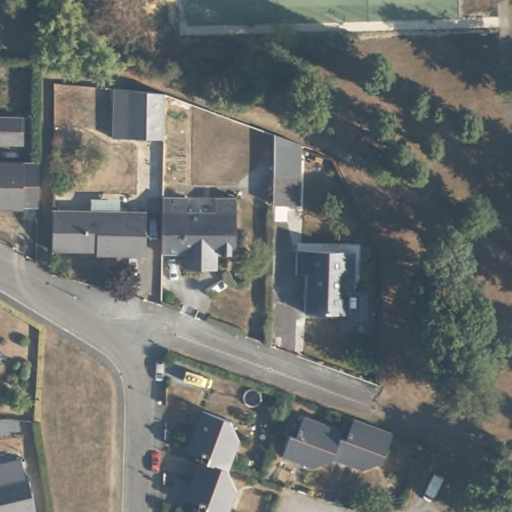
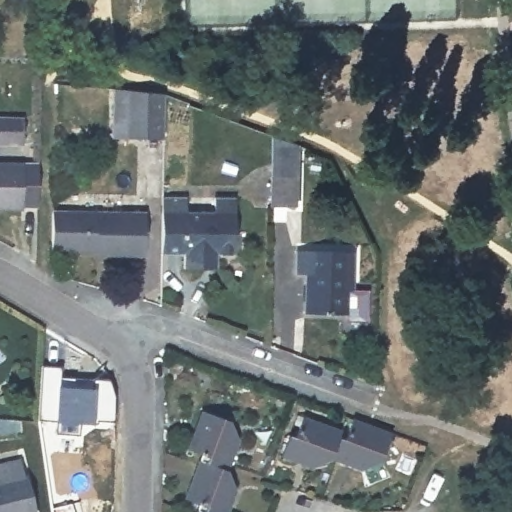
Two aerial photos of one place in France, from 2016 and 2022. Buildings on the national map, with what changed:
unchanged [(166,138),(115,138),(115,115),(115,88),(142,91),(166,94),(166,138)]
unchanged [(0,143),(0,119),(24,120),(21,144),(0,143)]
unchanged [(299,205),(275,204),(275,135),(300,144),(299,205)]
unchanged [(21,205),(21,208),(0,208),(0,163),(36,165),(35,206),(21,205)]
unchanged [(210,268),(186,267),(187,252),(165,251),(165,196),(190,196),(189,211),(216,211),(216,196),(239,197),(237,252),(219,252),(219,268),(210,268)]
unchanged [(52,209),(146,213),(145,255),(103,254),(102,251),(51,250),(52,209)]
unchanged [(355,289),(348,289),(347,313),(306,311),(307,271),(297,270),(298,249),(356,251),(355,289)]
new [(37,366),(58,366),(58,376),(72,376),(72,379),(90,380),(90,377),(106,377),(110,381),(113,399),(112,419),(95,419),(95,422),(79,422),(79,434),(55,434),(55,422),(37,421),(37,366)]
unchanged [(226,467),(238,488),(229,512),(193,512),(195,507),(202,509),(205,502),(185,495),(197,457),(205,460),(206,454),(185,446),(199,409),(227,418),(236,438),(226,467)]
unchanged [(392,428),(381,456),(361,466),(330,454),(310,463),(280,452),(288,430),(296,433),(305,410),(341,424),(339,431),(346,433),(354,414),(392,428)]
unchanged [(23,478),(26,477),(34,512),(0,512),(0,466),(20,462),(23,478)]

